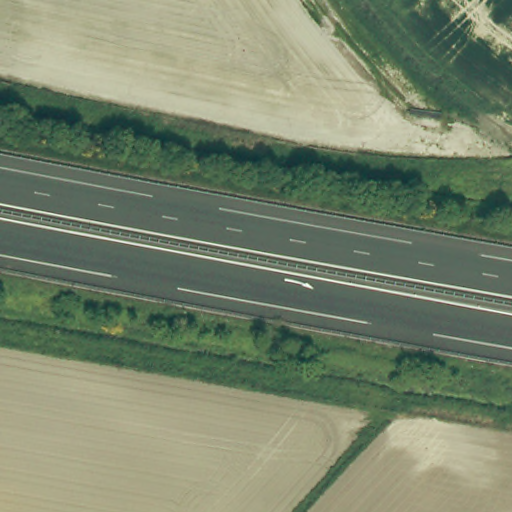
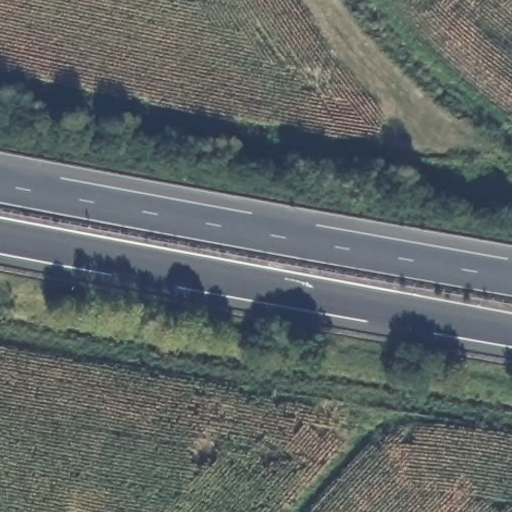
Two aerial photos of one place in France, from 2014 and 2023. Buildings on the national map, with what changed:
[]

